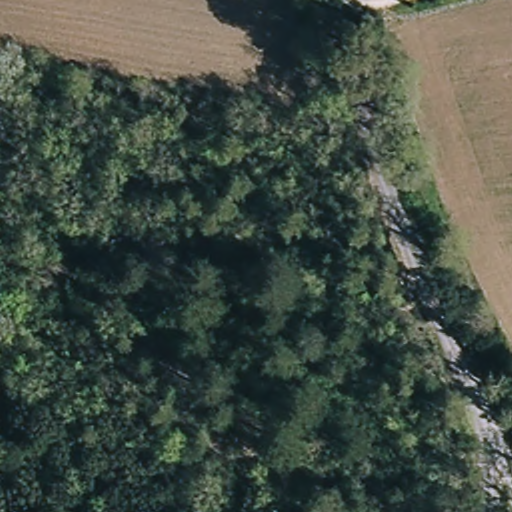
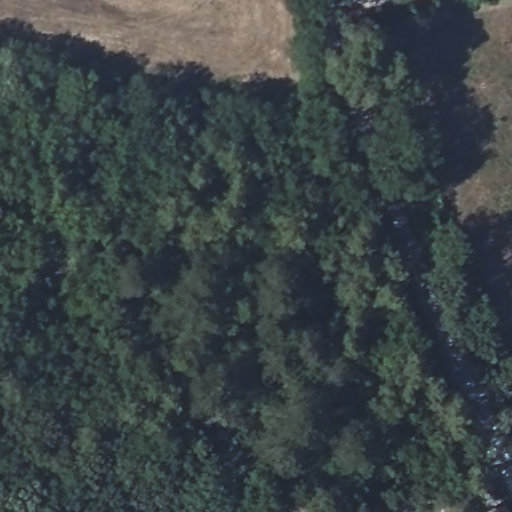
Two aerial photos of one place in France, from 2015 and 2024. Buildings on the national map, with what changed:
[]

